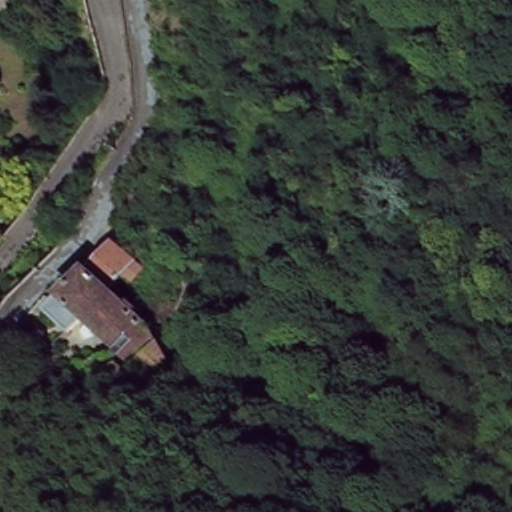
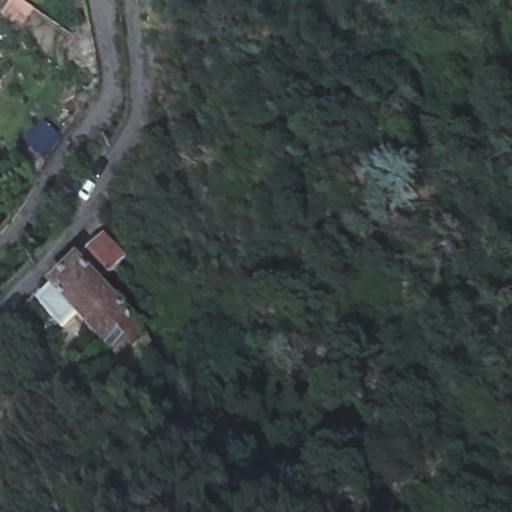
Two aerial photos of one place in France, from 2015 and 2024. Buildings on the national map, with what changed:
unchanged [(39,1),(37,3),(31,0),(40,0),(39,1)]
unchanged [(109,333),(78,305),(64,321),(43,301),(106,231),(127,249),(110,269),(103,276),(134,305),(109,333)]
unchanged [(134,305),(141,311),(161,342),(157,348),(140,372),(121,357),(126,349),(109,333),(134,305)]
unchanged [(0,381),(16,332),(35,370),(0,383),(0,381)]

